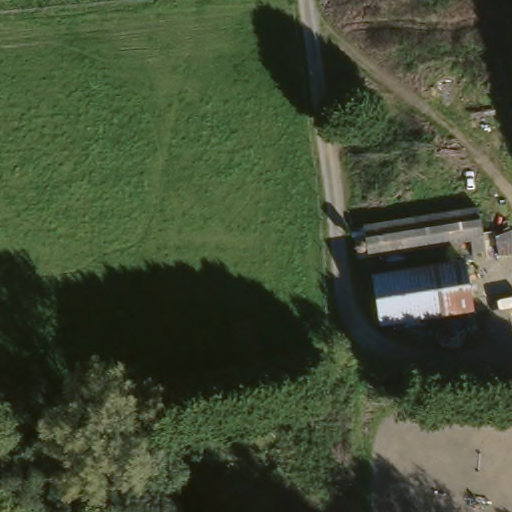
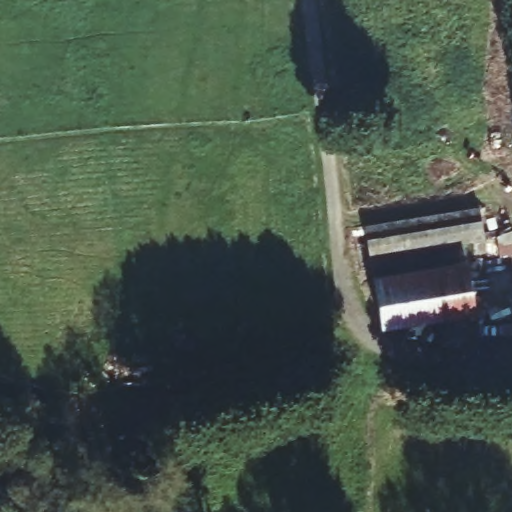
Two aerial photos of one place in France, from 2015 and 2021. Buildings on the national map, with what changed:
unchanged [(363,228),(475,210),(483,254),(471,256),(468,243),(366,259),(363,228)]
unchanged [(498,234),(512,229),(512,252),(501,253),(498,234)]
unchanged [(371,280),(463,264),(471,313),(378,329),(371,280)]

